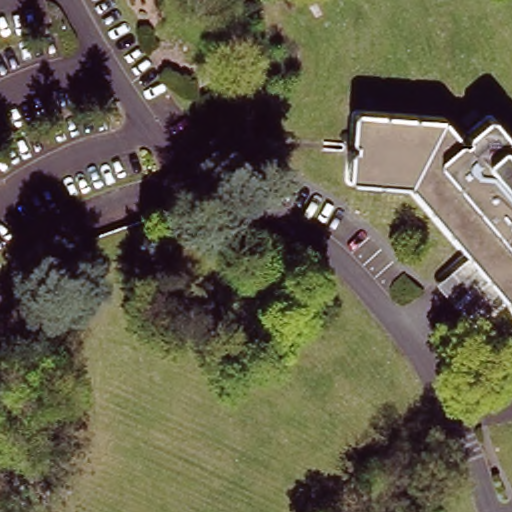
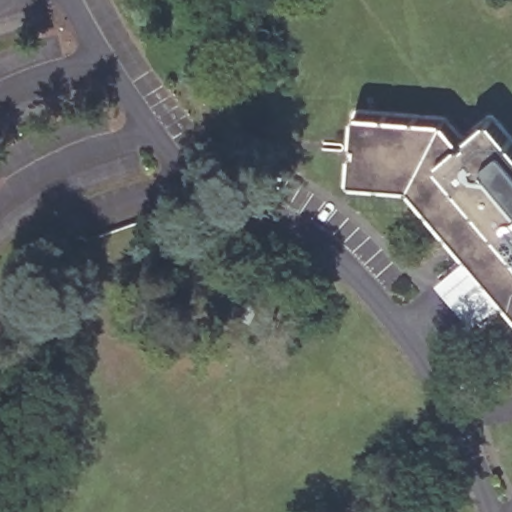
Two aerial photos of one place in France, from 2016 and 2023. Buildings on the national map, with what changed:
unchanged [(467,253),(407,181),(349,178),(352,108),(443,115),(459,134),(485,114),(492,115),(512,140),(512,306),(503,296),(487,276),(483,272),(467,253)]
unchanged [(435,280),(467,253),(483,272),(451,298),(435,280)]
unchanged [(471,322),(455,303),(487,276),(503,296),(471,322)]

